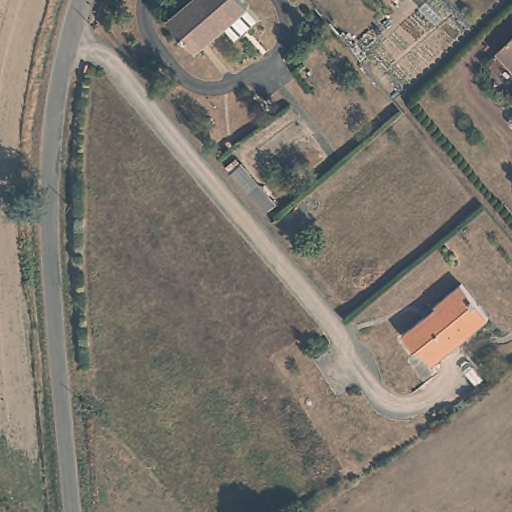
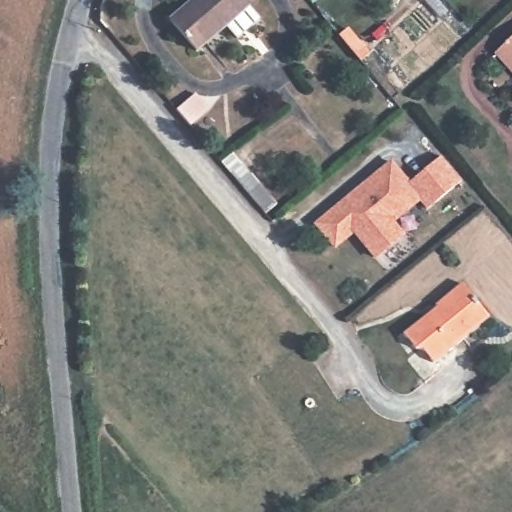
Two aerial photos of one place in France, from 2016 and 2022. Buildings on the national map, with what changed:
unchanged [(262,21),(239,39),(228,25),(195,50),(172,16),(193,0),(246,0),(262,21)]
unchanged [(394,2),(392,0),(396,0),(394,2)]
unchanged [(512,33),(512,66),(497,47),(512,33)]
new [(196,96),(210,112),(191,127),(177,111),(196,96)]
new [(390,160),(410,182),(441,157),(463,182),(427,211),(420,202),(395,222),(406,235),(375,261),(354,235),(335,251),(312,224),(390,160)]
unchanged [(494,316),(442,362),(429,347),(417,348),(402,332),(462,281),(494,316)]

